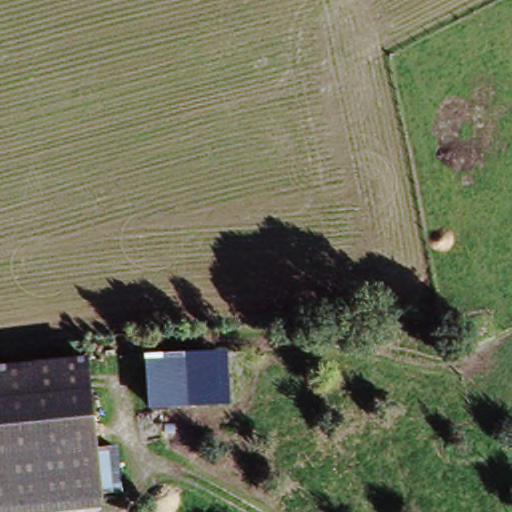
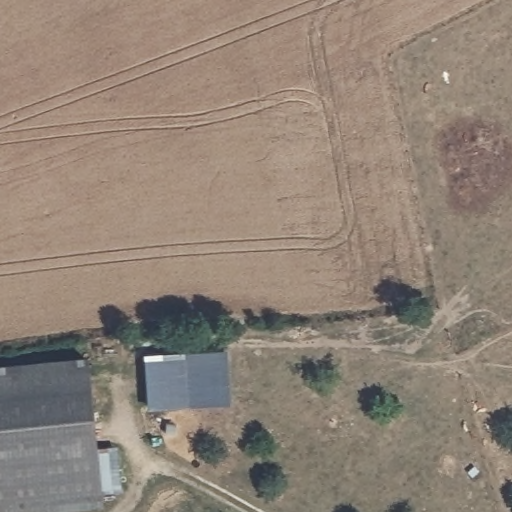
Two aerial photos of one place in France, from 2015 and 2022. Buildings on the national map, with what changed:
unchanged [(233,408),(154,412),(149,356),(233,353),(233,408)]
unchanged [(0,369),(88,361),(102,500),(0,510),(0,369)]

